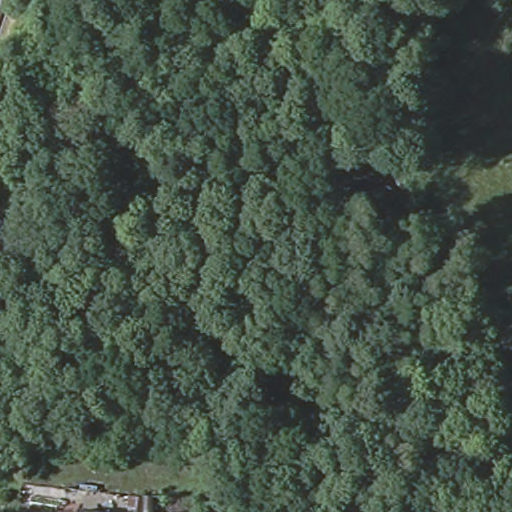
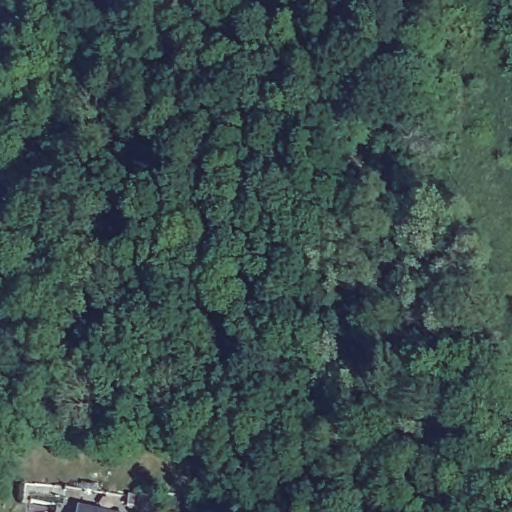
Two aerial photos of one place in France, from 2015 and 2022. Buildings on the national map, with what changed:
unchanged [(195,512),(132,512),(132,506),(125,505),(127,494),(132,495),(198,493),(195,512)]
unchanged [(80,507),(106,512),(80,512),(80,507)]

